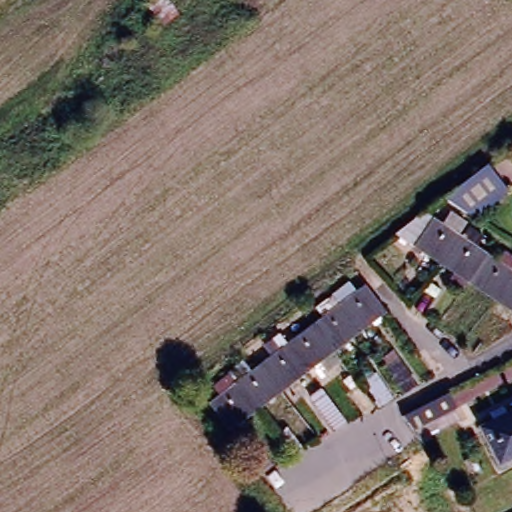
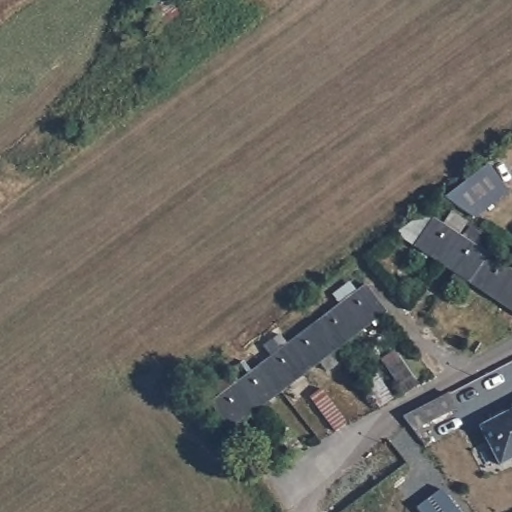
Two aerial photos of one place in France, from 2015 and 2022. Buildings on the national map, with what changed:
unchanged [(130,19),(156,0),(170,0),(180,10),(138,39),(130,19)]
unchanged [(445,199),(488,166),(507,192),(475,219),(445,199)]
unchanged [(418,220),(426,213),(436,220),(445,208),(466,221),(465,224),(469,226),(442,266),(397,235),(418,220)]
unchanged [(470,284),(467,282),(461,290),(451,283),(457,275),(442,266),(469,226),(485,237),(478,247),(490,255),(470,284)]
unchanged [(470,284),(490,255),(499,262),(506,252),(512,256),(512,280),(497,302),(470,284)]
unchanged [(512,280),(512,312),(497,302),(512,280)]
unchanged [(348,285),(355,294),(366,286),(387,314),(361,334),(333,297),(348,285)]
unchanged [(315,325),(325,319),(317,309),(333,297),(361,334),(348,345),(352,350),(343,358),(338,352),(336,353),(315,325)]
unchanged [(289,345),(315,325),(336,353),(333,356),(337,361),(327,370),(322,364),(310,373),(289,345)]
unchanged [(278,353),(271,344),(282,335),(289,345),(310,373),(285,393),(263,365),(278,353)]
unchanged [(384,363),(395,355),(420,387),(409,395),(384,363)]
unchanged [(238,385),(231,376),(245,365),(252,375),(263,365),(285,393),(259,413),(238,385)]
unchanged [(394,398),(382,407),(360,378),(372,369),(394,398)]
unchanged [(232,433),(211,405),(238,385),(259,413),(232,433)]
unchanged [(345,425),(333,433),(308,401),(320,392),(345,425)]
unchanged [(402,425),(432,410),(446,402),(453,416),(411,437),(406,431),(402,425)]
unchanged [(480,429),(512,412),(512,460),(498,467),(480,429)]
unchanged [(300,450),(290,457),(270,430),(280,423),(300,450)]
unchanged [(267,468),(255,477),(241,460),(252,450),(267,468)]
new [(441,492),(456,512),(416,512),(415,511),(441,492)]

